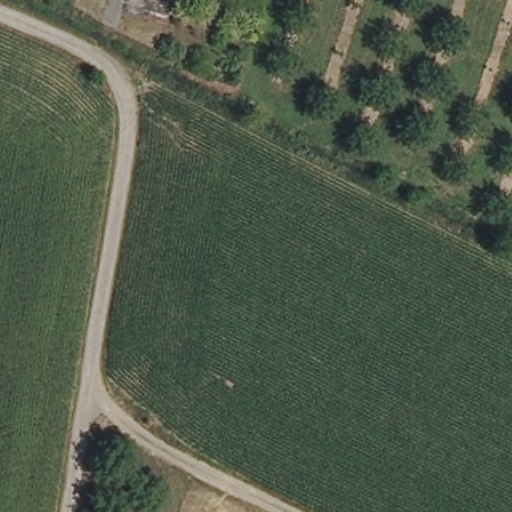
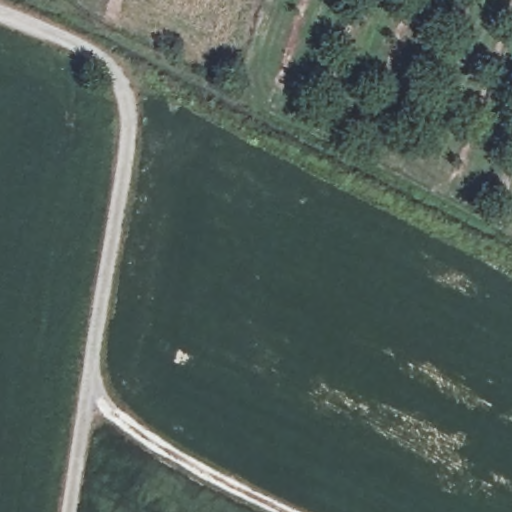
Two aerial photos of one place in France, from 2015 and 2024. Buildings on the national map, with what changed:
[]

